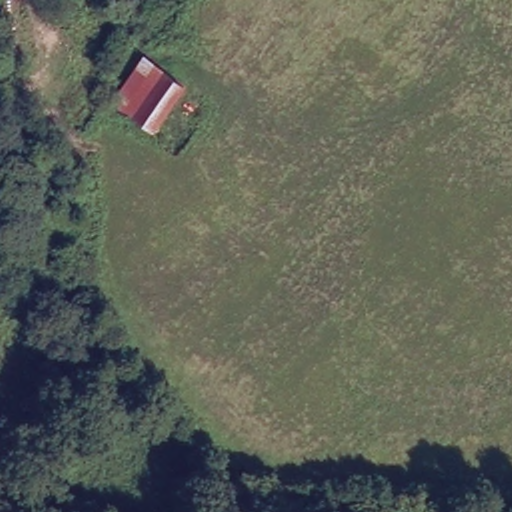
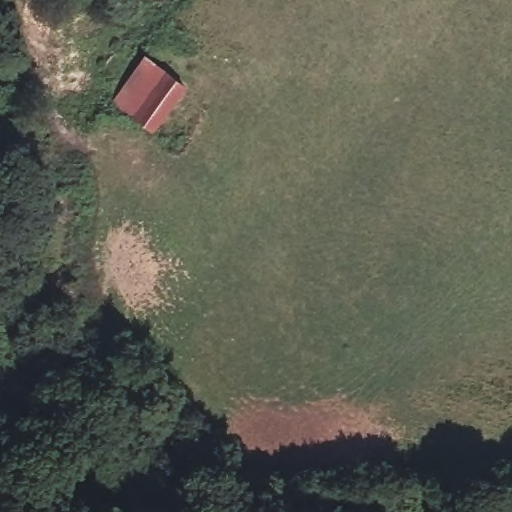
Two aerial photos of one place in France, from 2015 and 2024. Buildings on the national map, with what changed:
unchanged [(106,104),(143,56),(187,90),(153,132),(106,104)]

